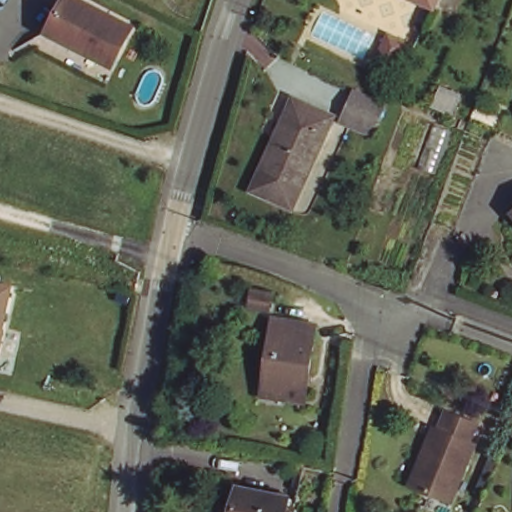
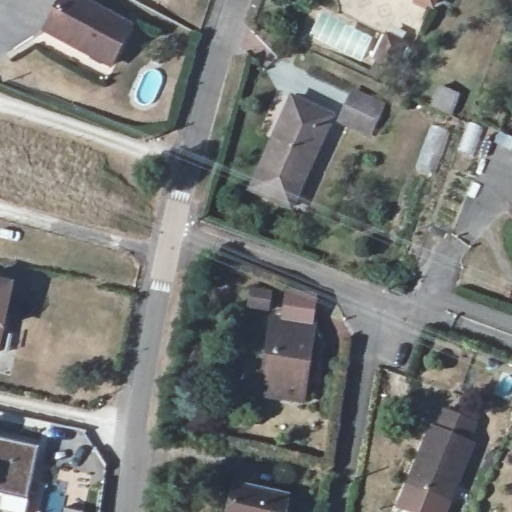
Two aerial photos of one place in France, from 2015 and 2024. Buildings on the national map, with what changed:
unchanged [(76,0),(135,28),(116,64),(51,34),(67,0),(76,0)]
unchanged [(417,0),(436,0),(433,7),(417,0)]
unchanged [(404,48),(394,69),(378,62),(388,41),(404,48)]
unchanged [(434,107),(443,84),(465,93),(454,116),(434,107)]
unchanged [(385,104),(372,132),(344,119),(357,92),(385,104)]
unchanged [(290,205),(252,187),(276,135),(293,98),(299,101),(333,117),(290,205)]
unchanged [(11,282),(5,307),(0,327),(0,280),(11,282)]
unchanged [(273,294),(269,312),(249,310),(250,292),(273,294)]
unchanged [(266,390),(273,318),(309,323),(317,324),(314,345),(307,405),(287,403),(265,400),(266,390)]
unchanged [(425,461),(435,431),(442,434),(450,413),(480,422),(472,443),(477,445),(455,501),(423,490),(415,488),(425,461)]
new [(38,447),(26,498),(0,494),(0,439),(38,447)]
unchanged [(288,497),(285,512),(237,512),(240,487),(288,497)]
new [(79,512),(61,512),(62,508),(79,512)]

